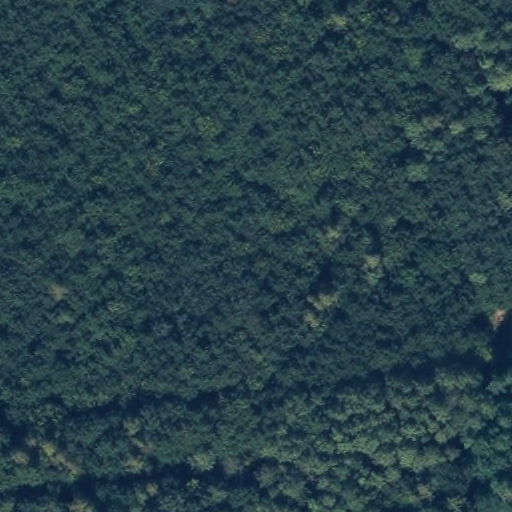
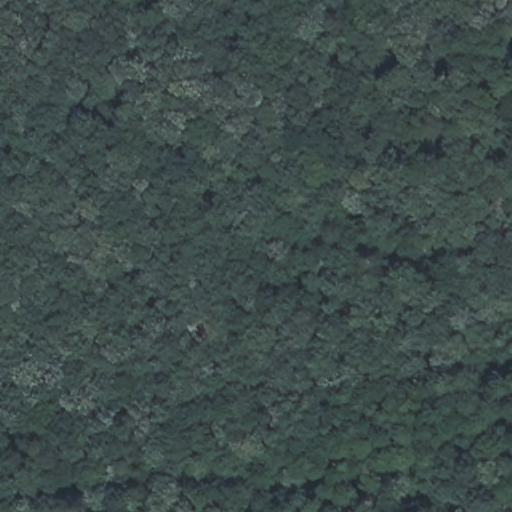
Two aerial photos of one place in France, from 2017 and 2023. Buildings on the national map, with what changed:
[]

